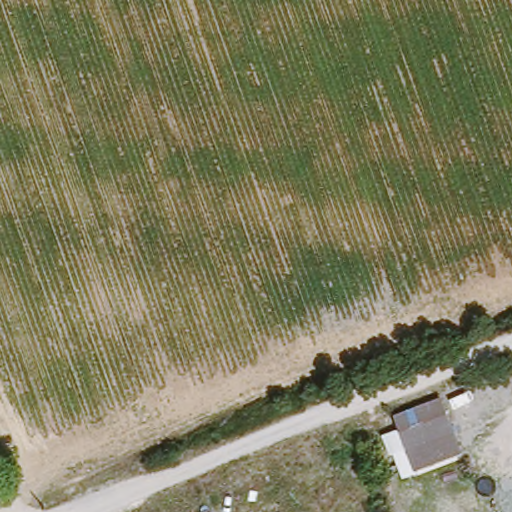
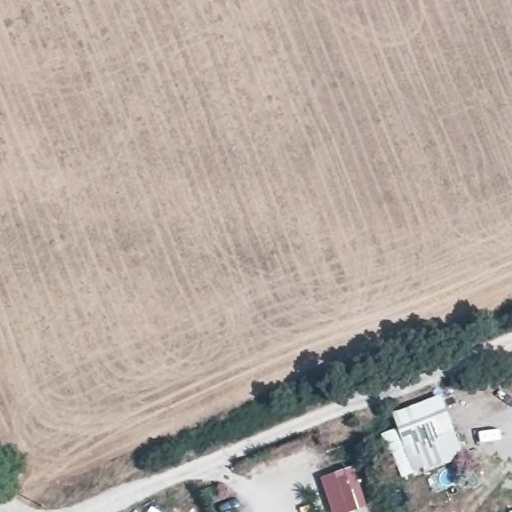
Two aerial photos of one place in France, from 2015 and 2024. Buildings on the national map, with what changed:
unchanged [(388,456),(381,437),(399,430),(395,417),(438,401),(452,434),(388,456)]
unchanged [(458,455),(402,476),(393,453),(452,434),(458,455)]
new [(352,512),(334,512),(323,477),(354,467),(366,507),(352,512)]

